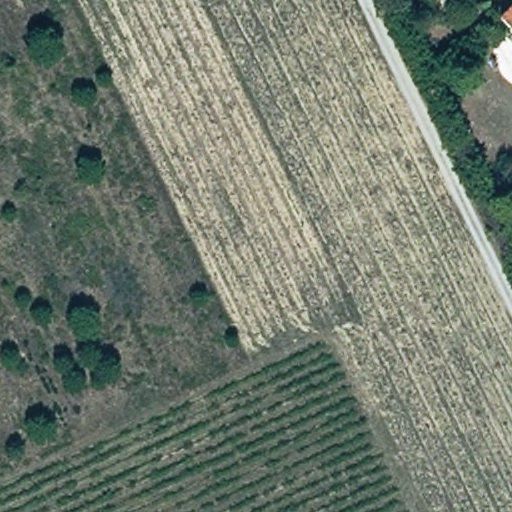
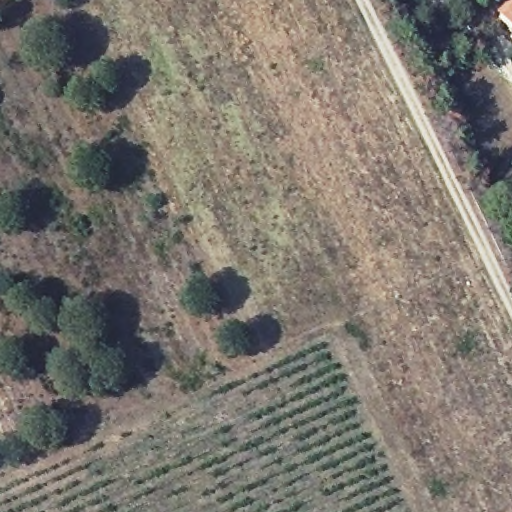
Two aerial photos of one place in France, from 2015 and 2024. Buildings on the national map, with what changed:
unchanged [(512,32),(497,17),(512,3),(512,32)]
unchanged [(512,34),(512,39),(510,36),(512,34)]

